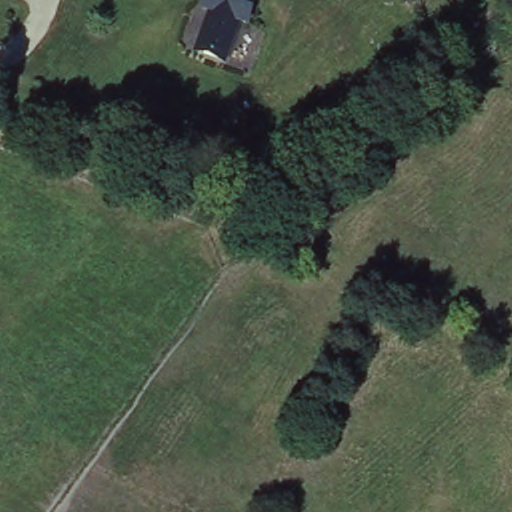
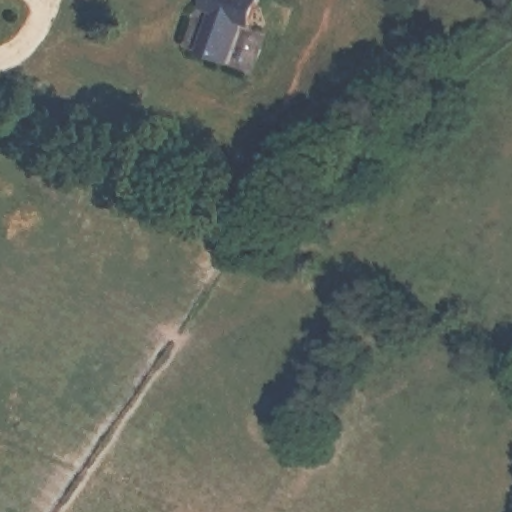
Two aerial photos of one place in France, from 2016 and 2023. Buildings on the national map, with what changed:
unchanged [(250,30),(238,25),(223,69),(196,60),(208,19),(199,14),(203,0),(252,0),(261,4),(250,30)]

